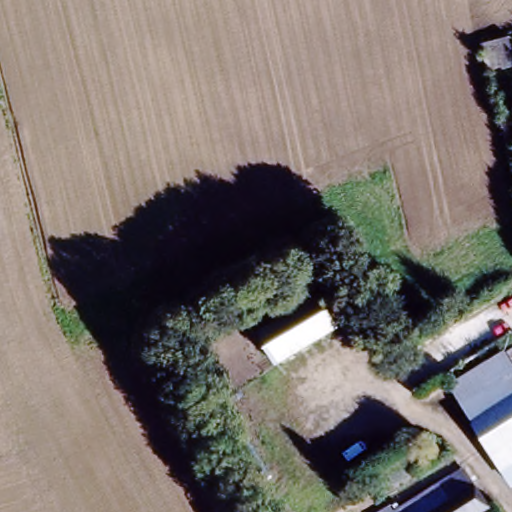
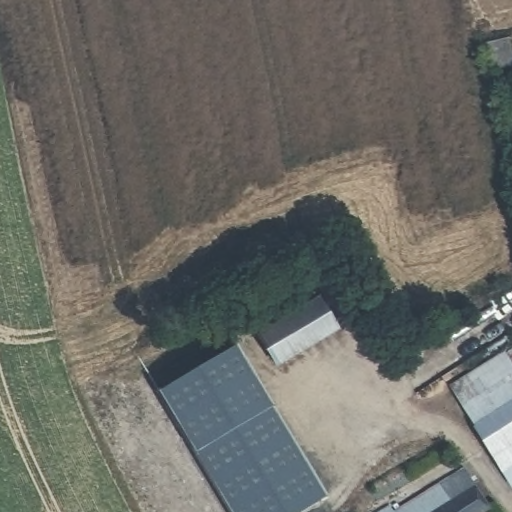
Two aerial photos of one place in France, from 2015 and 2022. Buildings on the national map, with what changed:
unchanged [(316,292),(342,335),(281,372),(255,328),(316,292)]
new [(233,345),(320,489),(275,512),(221,512),(150,394),(233,345)]
unchanged [(458,412),(452,402),(448,396),(498,362),(502,368),(508,377),(512,375),(512,445),(491,458),(458,412)]
unchanged [(512,489),(491,458),(512,445),(512,489)]
unchanged [(388,503),(392,511),(471,470),(495,508),(488,512),(370,512),(388,503)]
new [(320,489),(327,500),(307,512),(275,512),(320,489)]

